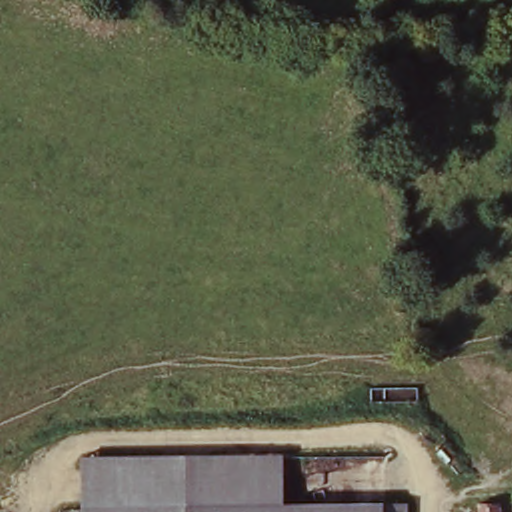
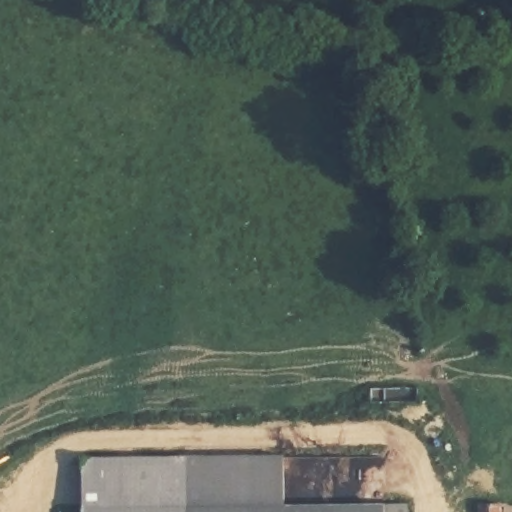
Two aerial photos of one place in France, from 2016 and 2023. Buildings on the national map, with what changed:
unchanged [(282,452),(282,504),(381,504),(409,504),(409,512),(80,512),(80,453),(282,452)]

